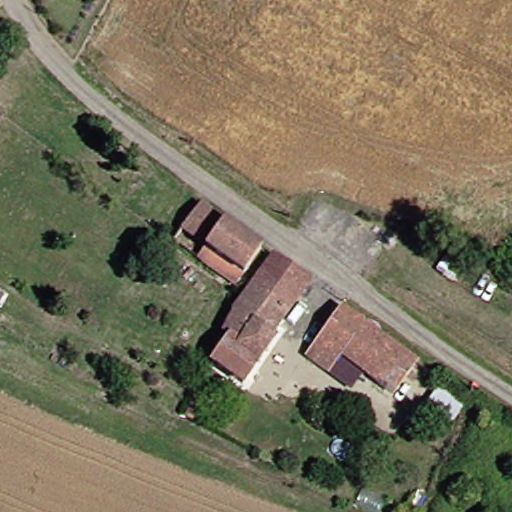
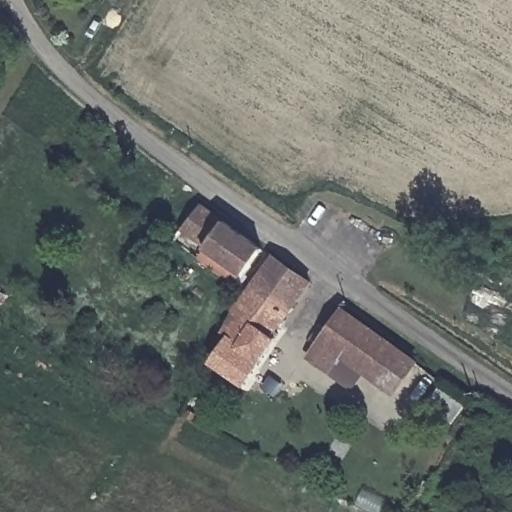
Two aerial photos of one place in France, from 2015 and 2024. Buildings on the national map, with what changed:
unchanged [(0,17),(0,8),(5,14),(0,17)]
unchanged [(219,257),(214,264),(184,243),(208,208),(271,254),(252,282),(219,257)]
unchanged [(317,288),(297,316),(261,290),(281,262),(317,288)]
unchanged [(251,320),(243,314),(261,290),(297,316),(282,337),(287,340),(254,387),(223,365),(239,342),(230,335),(251,320)]
unchanged [(332,337),(352,310),(425,361),(399,393),(328,341),(332,337)]
unchanged [(420,409),(399,393),(425,361),(445,374),(420,409)]

